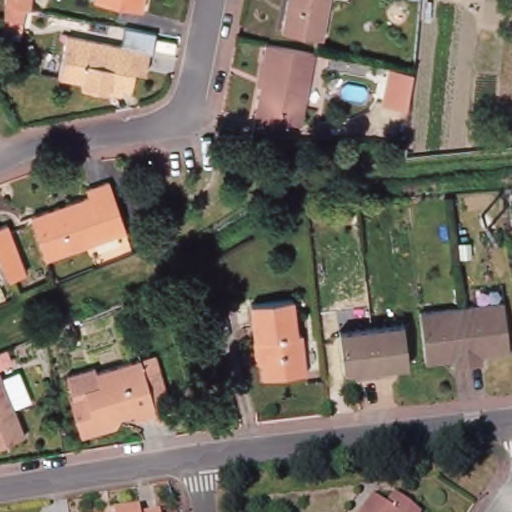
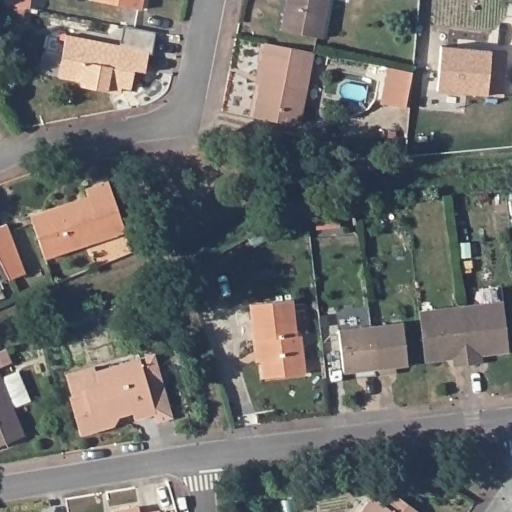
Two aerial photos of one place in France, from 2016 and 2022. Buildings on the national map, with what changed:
unchanged [(2,19),(4,3),(4,0),(30,0),(28,8),(25,7),(22,23),(2,19)]
unchanged [(141,9),(93,0),(143,0),(141,9)]
unchanged [(281,30),(287,0),(329,0),(322,38),(281,30)]
unchanged [(145,72),(135,71),(131,89),(115,85),(113,92),(81,86),(82,81),(58,77),(66,35),(120,46),(120,43),(150,49),(145,72)]
unchanged [(300,123),(282,120),(282,123),(253,117),(264,62),(262,62),(265,43),(314,53),(300,123)]
new [(441,46),(507,53),(503,97),(437,90),(441,46)]
unchanged [(410,69),(403,105),(380,102),(384,67),(410,69)]
unchanged [(126,231),(45,259),(31,216),(88,197),(86,190),(109,182),(126,231)]
unchanged [(10,286),(0,267),(0,232),(7,229),(26,278),(10,286)]
unchanged [(297,334),(301,334),(306,373),(263,378),(258,340),(254,341),(250,304),(292,299),(297,334)]
unchanged [(503,302),(510,352),(482,356),(482,363),(468,365),(461,306),(503,302)]
unchanged [(468,365),(453,366),(453,359),(425,362),(419,311),(461,306),(468,365)]
unchanged [(402,322),(408,365),(390,367),(391,374),(376,375),(371,326),(402,322)]
unchanged [(376,375),(362,377),(361,370),(343,372),(338,330),(371,326),(376,375)]
unchanged [(11,363),(0,367),(0,352),(6,349),(11,363)]
unchanged [(70,397),(72,396),(66,375),(94,366),(95,371),(140,358),(145,374),(159,370),(172,417),(156,422),(154,414),(134,419),(132,412),(112,418),(114,425),(81,435),(70,397)]
unchanged [(30,401),(13,408),(25,436),(0,446),(0,376),(1,378),(18,371),(30,401)]
unchanged [(386,506),(395,494),(420,512),(361,512),(372,496),(386,506)]
unchanged [(139,507),(140,512),(113,512),(113,511),(139,507)]
unchanged [(153,512),(160,511),(160,512),(153,512)]

